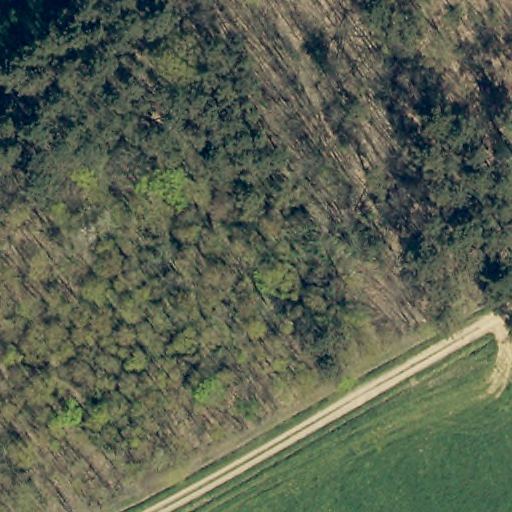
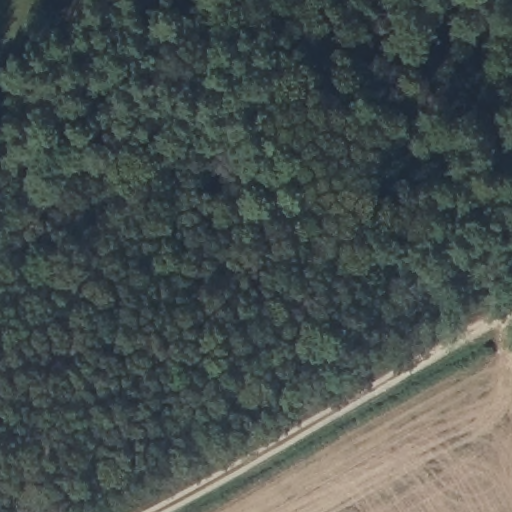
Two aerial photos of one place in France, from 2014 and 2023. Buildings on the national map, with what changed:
[]

